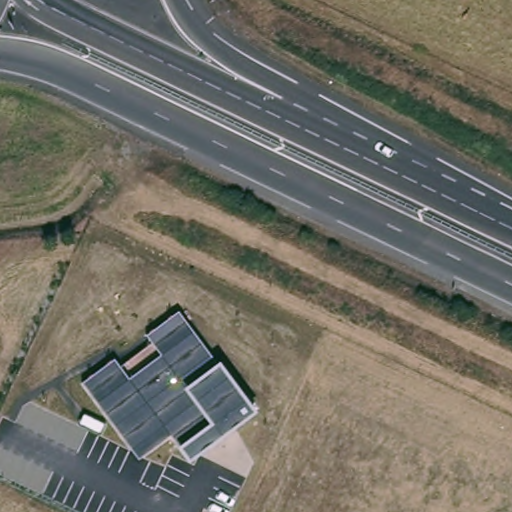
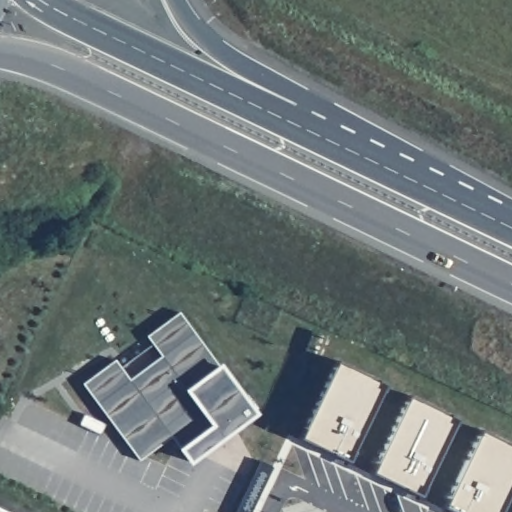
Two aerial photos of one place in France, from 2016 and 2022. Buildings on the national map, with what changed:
unchanged [(83,383),(114,360),(130,379),(162,356),(147,335),(180,313),(219,366),(255,416),(190,464),(179,449),(172,438),(140,461),(83,383)]
new [(347,467),(297,443),(335,364),(384,387),(347,467)]
new [(407,398),(457,422),(419,501),(369,478),(407,398)]
new [(512,449),(512,491),(502,512),(441,512),(479,433),(512,449)]
new [(0,512),(0,509),(6,512),(0,512)]

